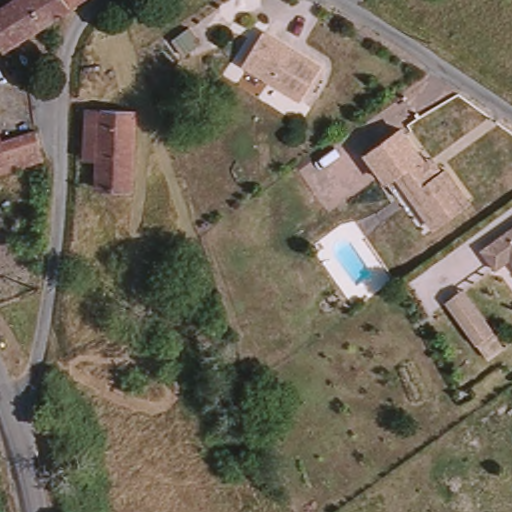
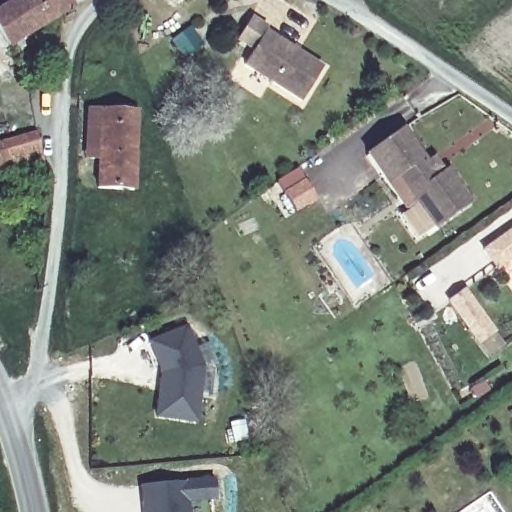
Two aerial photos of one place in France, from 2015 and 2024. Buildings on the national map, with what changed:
unchanged [(61,0),(70,13),(5,54),(0,47),(0,7),(11,0),(61,0)]
demolished [(61,0),(91,0),(70,13),(61,0)]
unchanged [(320,66),(299,99),(242,64),(262,30),(320,66)]
unchanged [(134,109),(132,186),(97,187),(98,110),(134,109)]
unchanged [(45,149),(45,155),(0,168),(0,136),(35,126),(45,149)]
unchanged [(435,183),(445,175),(468,208),(433,232),(396,179),(385,187),(365,159),(401,134),(435,183)]
unchanged [(431,164),(437,173),(432,177),(425,169),(431,164)]
unchanged [(500,274),(487,255),(512,238),(512,265),(500,274)]
new [(505,342),(509,348),(490,362),(447,302),(463,290),(502,344),(505,342)]
new [(187,328),(204,367),(197,422),(157,417),(163,373),(150,343),(187,328)]
new [(142,502),(141,485),(165,483),(216,479),(217,498),(187,501),(188,512),(143,512),(142,502)]

